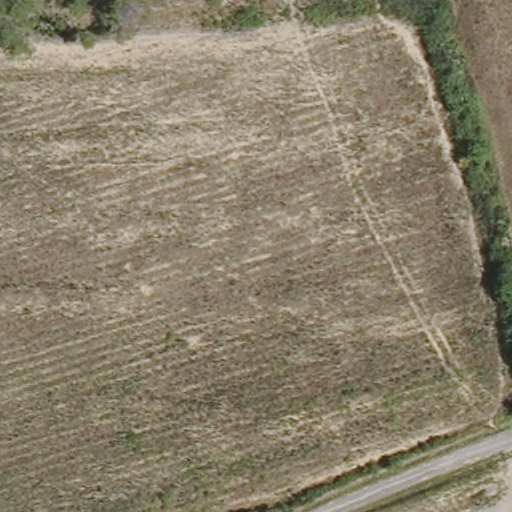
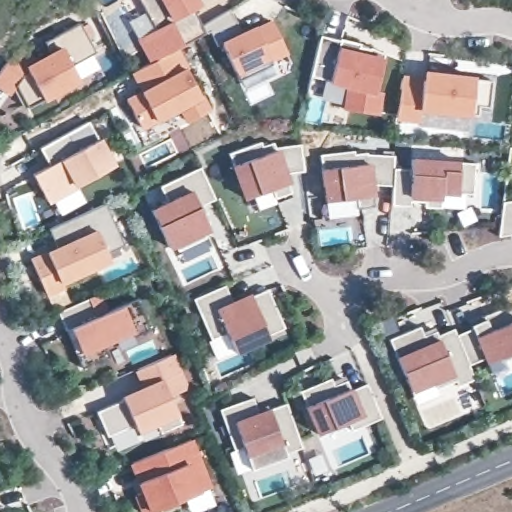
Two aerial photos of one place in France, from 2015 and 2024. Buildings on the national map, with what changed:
new [(201,5),(193,10),(202,25),(204,31),(183,44),(184,46),(177,50),(176,47),(148,62),(135,39),(155,29),(140,0),(199,0),(201,5)]
new [(209,31),(205,33),(202,25),(229,10),(242,31),(271,20),(287,55),(270,61),(272,63),(238,78),(209,31)]
new [(16,46),(37,57),(50,50),(44,42),(80,23),(95,52),(70,64),(80,82),(44,101),(42,97),(27,107),(15,86),(10,94),(0,87),(0,71),(16,46)]
new [(377,92),(379,92),(376,114),(346,110),(350,86),(309,76),(318,35),(339,40),(339,37),(360,42),(359,46),(370,47),(384,53),(377,92)]
new [(176,47),(208,108),(188,119),(179,103),(140,124),(127,100),(144,91),(133,70),(176,47)]
new [(489,106),(478,105),(477,114),(420,108),(418,120),(395,117),(401,77),(425,80),(426,72),(491,79),(489,106)]
new [(50,167),(39,149),(89,121),(113,165),(49,201),(38,182),(35,175),(38,172),(50,167)]
new [(303,171),(287,173),(284,175),(291,192),(275,198),(272,189),(245,199),(228,153),(261,141),(262,146),(273,142),(275,147),(300,144),(303,171)]
new [(316,152),(350,146),(351,150),(363,148),(363,149),(390,151),(388,182),(373,182),(367,182),(370,202),(353,205),(354,212),(326,216),(323,197),(316,152)]
new [(395,167),(411,165),(411,157),(474,163),(472,193),(440,194),(440,206),(424,205),(425,199),(410,198),(409,204),(392,204),(395,167)]
new [(168,201),(160,187),(200,168),(214,198),(202,204),(206,212),(202,214),(210,229),(169,248),(150,208),(168,201)]
new [(504,200),(512,199),(512,227),(500,229),(499,237),(498,237),(502,201),(504,200)]
new [(48,227),(105,202),(124,245),(117,248),(120,255),(60,282),(62,286),(46,293),(31,260),(47,253),(57,249),(48,227)]
new [(224,284),(232,304),(267,289),(284,327),(268,335),(269,337),(219,358),(192,297),(224,284)]
new [(102,293),(110,311),(137,299),(149,327),(104,345),(108,356),(81,367),(57,312),(102,293)]
new [(472,328),(471,326),(484,320),(483,316),(512,305),(512,351),(484,362),(483,357),(468,365),(456,336),(472,328)]
new [(456,336),(468,365),(473,378),(458,385),(456,380),(437,387),(435,381),(410,391),(389,339),(420,327),(423,337),(435,332),(437,336),(453,330),(456,336)]
new [(171,356),(181,378),(182,383),(183,387),(181,390),(178,392),(168,395),(180,422),(161,431),(157,421),(137,430),(133,420),(107,435),(97,412),(146,387),(137,371),(171,356)]
new [(330,378),(334,386),(347,381),(351,387),(366,384),(380,417),(351,430),(349,422),(316,435),(305,407),(307,407),(299,391),(330,378)]
new [(252,398),(257,412),(286,403),(301,447),(283,452),(285,457),(250,470),(242,447),(233,450),(219,409),(252,398)]
new [(147,512),(141,512),(135,496),(139,491),(130,465),(192,440),(211,485),(147,512)]

